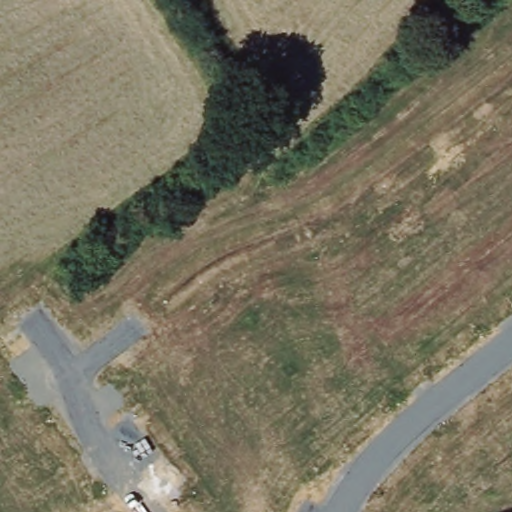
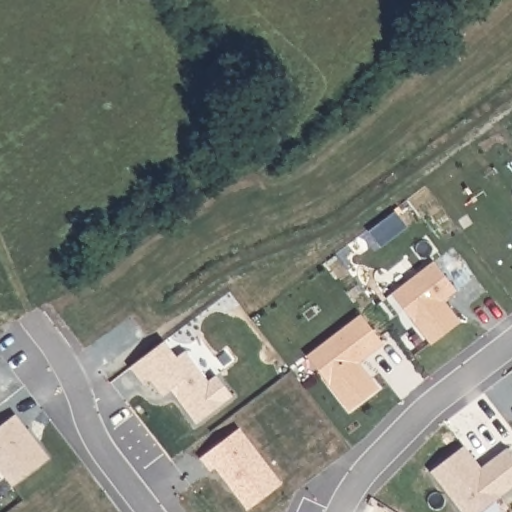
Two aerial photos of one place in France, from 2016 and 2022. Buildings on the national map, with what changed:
new [(430,345),(391,293),(433,260),(456,290),(443,301),(458,321),(430,345)]
new [(348,411),(306,356),(360,314),(383,342),(359,363),(377,387),(348,411)]
new [(170,388),(163,394),(149,378),(143,383),(131,367),(164,342),(177,358),(184,352),(208,382),(215,377),(230,397),(195,423),(170,388)]
new [(0,470),(0,426),(15,415),(47,457),(12,485),(0,470)]
new [(479,471),(493,461),(505,452),(512,461),(512,490),(482,512),(457,512),(429,475),(462,450),(479,471)]

